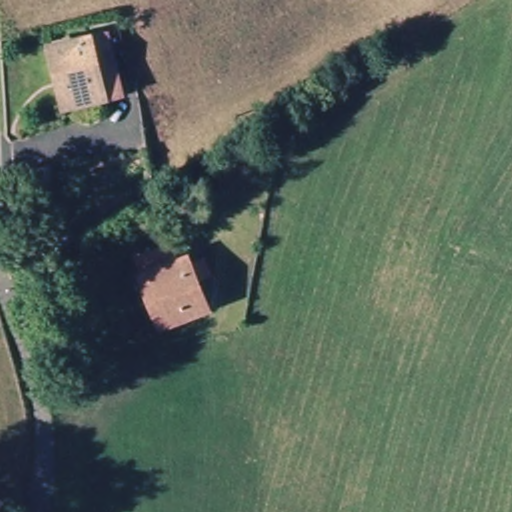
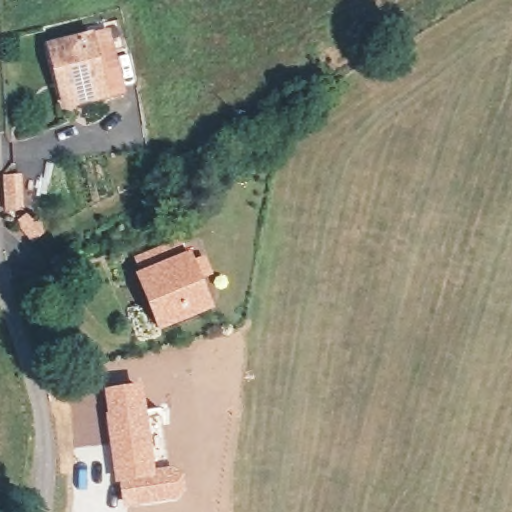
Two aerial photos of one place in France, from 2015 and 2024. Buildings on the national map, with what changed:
unchanged [(120,94),(106,100),(103,94),(69,105),(52,45),(102,30),(120,94)]
unchanged [(12,212),(10,182),(25,181),(27,210),(12,212)]
demolished [(0,220),(0,191),(11,190),(13,219),(0,220)]
unchanged [(165,332),(143,286),(136,270),(180,249),(191,272),(204,266),(211,280),(197,286),(210,314),(166,335),(165,332)]
new [(143,418),(160,416),(168,469),(180,477),(181,491),(174,499),(126,505),(123,480),(117,480),(109,417),(112,416),(109,393),(139,388),(143,418)]

